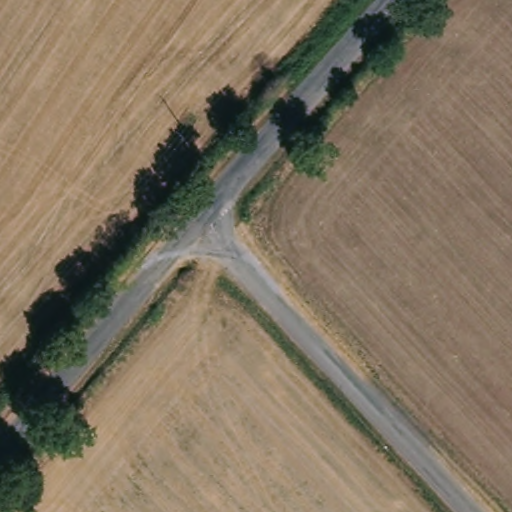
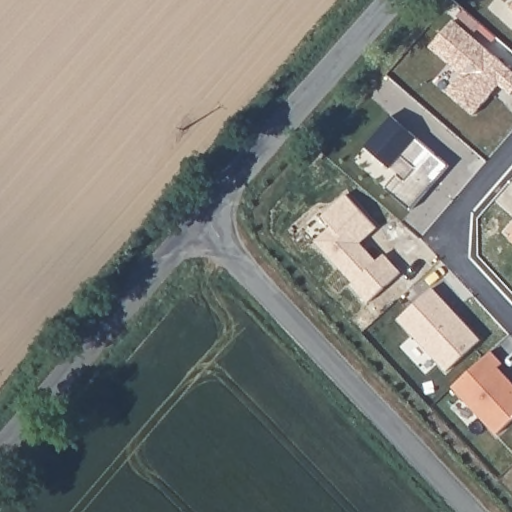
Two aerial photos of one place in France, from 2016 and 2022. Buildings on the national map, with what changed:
new [(512,68),(512,94),(511,95),(498,86),(473,116),(445,92),(460,75),(430,49),(455,20),(512,68)]
new [(449,165),(410,210),(385,190),(398,175),(405,181),(417,167),(403,155),(392,167),(366,145),(391,117),(449,165)]
new [(378,227),(362,244),(377,261),(387,253),(404,271),(366,304),(350,286),(353,283),(315,241),(331,225),(322,216),(347,195),(378,227)]
new [(508,239),(512,234),(512,242),(508,239)]
new [(481,341),(447,372),(398,319),(433,287),(481,341)]
new [(503,362),(497,368),(512,383),(512,420),(496,435),(453,387),(492,351),(503,362)]

